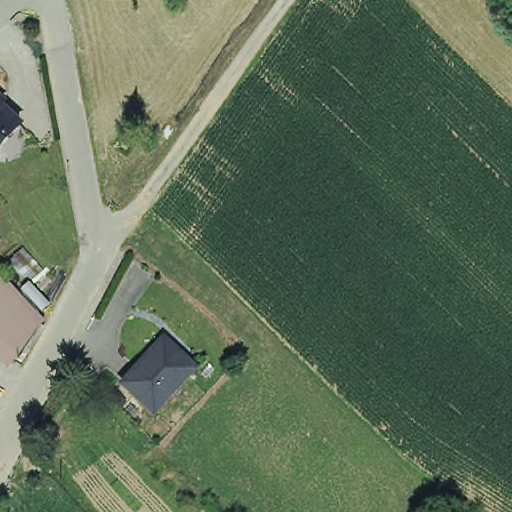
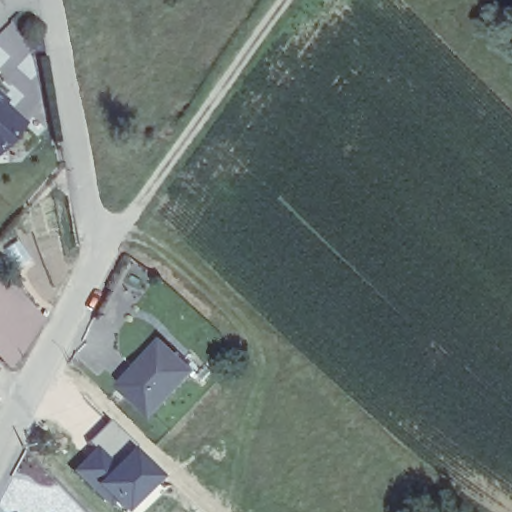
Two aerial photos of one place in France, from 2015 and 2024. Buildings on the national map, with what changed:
unchanged [(0,105),(0,100),(2,102),(0,105)]
unchanged [(20,125),(18,127),(0,146),(2,157),(0,157),(0,106),(17,122),(20,125)]
unchanged [(6,367),(0,359),(0,277),(48,320),(6,367)]
unchanged [(122,385),(163,339),(195,368),(153,414),(122,385)]
new [(119,512),(87,486),(70,470),(92,445),(87,441),(105,422),(125,442),(158,476),(122,512),(119,512)]

